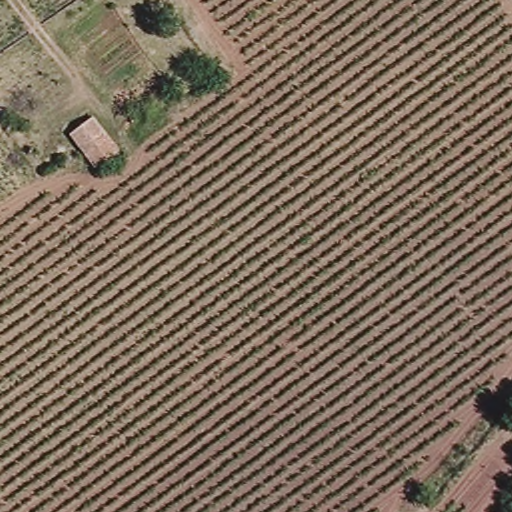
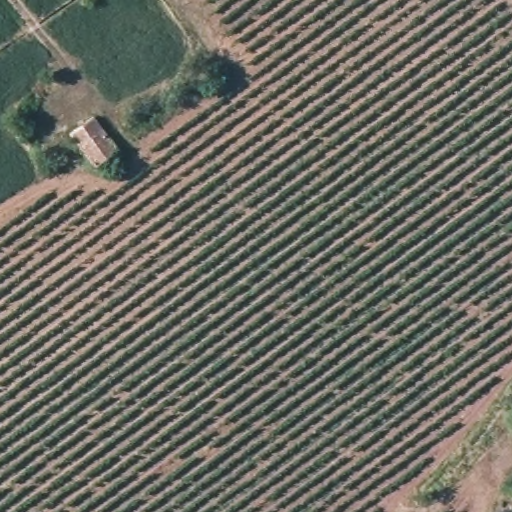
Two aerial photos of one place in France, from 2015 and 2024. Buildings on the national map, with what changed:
unchanged [(98,162),(87,148),(72,128),(93,113),(108,133),(119,148),(98,162)]

